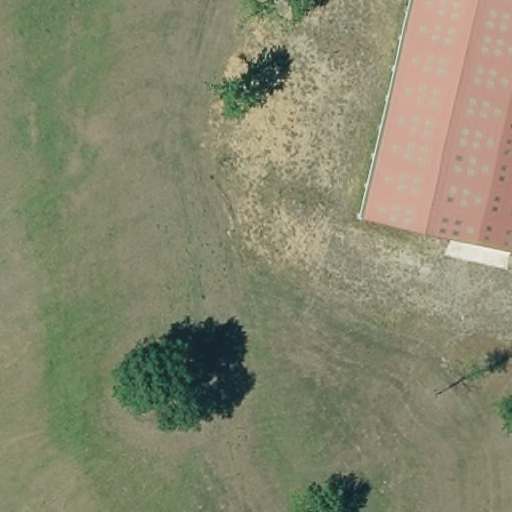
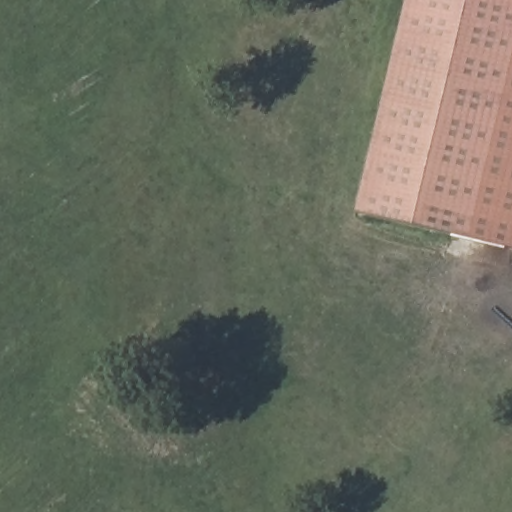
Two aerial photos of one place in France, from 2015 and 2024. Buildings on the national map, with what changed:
unchanged [(512,0),(512,250),(360,214),(411,0),(512,0)]

